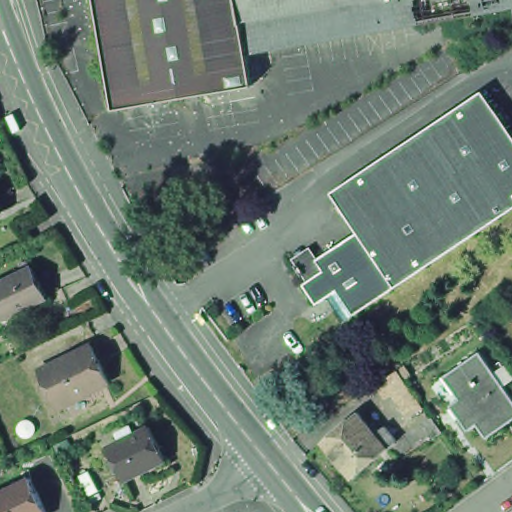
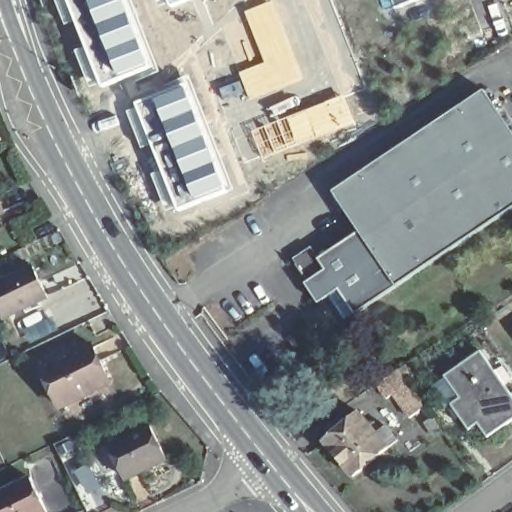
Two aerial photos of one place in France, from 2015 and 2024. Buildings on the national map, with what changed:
new [(140,57),(85,82),(54,0),(116,0),(140,57)]
demolished [(110,106),(92,0),(237,0),(245,47),(250,82),(110,106)]
new [(158,7),(155,0),(175,0),(158,7)]
demolished [(237,0),(512,0),(512,2),(245,47),(237,0)]
new [(399,10),(394,0),(421,0),(399,10)]
new [(185,84),(233,185),(175,215),(125,112),(185,84)]
unchanged [(486,87),(512,126),(512,160),(375,247),(361,227),(335,188),(486,87)]
unchanged [(375,247),(512,160),(512,205),(397,282),(375,247)]
unchanged [(1,216),(0,216),(0,212),(1,216)]
unchanged [(312,243),(320,255),(361,227),(375,247),(312,287),(306,278),(310,276),(295,254),(312,243)]
unchanged [(335,307),(339,305),(330,292),(320,298),(312,287),(375,247),(397,282),(365,305),(342,320),(335,307)]
unchanged [(50,293),(7,314),(0,300),(0,280),(36,263),(50,293)]
unchanged [(112,383),(62,408),(44,369),(93,346),(112,383)]
unchanged [(512,425),(492,438),(483,425),(475,431),(457,405),(465,398),(450,376),(485,352),(512,389),(512,425)]
unchanged [(425,407),(408,417),(393,395),(388,398),(379,386),(400,372),(425,407)]
unchanged [(320,445),(355,417),(365,410),(375,423),(394,444),(383,453),(348,482),(320,445)]
unchanged [(441,427),(434,432),(425,418),(432,412),(441,427)]
unchanged [(167,452),(126,471),(111,440),(151,420),(167,452)]
unchanged [(45,512),(0,512),(0,490),(31,475),(48,511),(45,512)]

